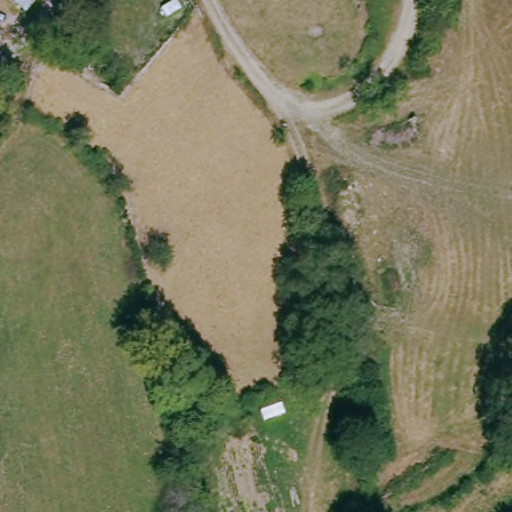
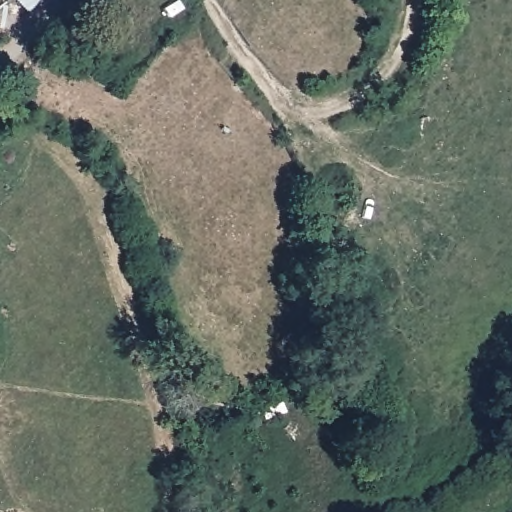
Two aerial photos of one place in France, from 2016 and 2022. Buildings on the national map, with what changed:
unchanged [(24,10),(15,0),(31,0),(24,10)]

